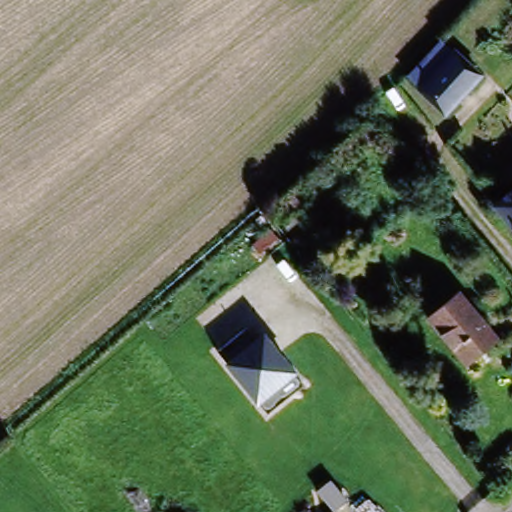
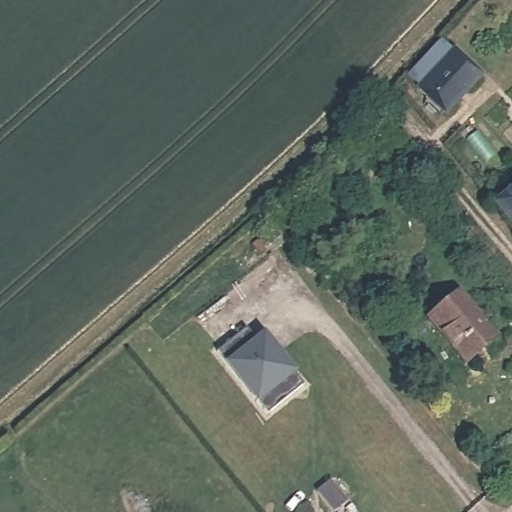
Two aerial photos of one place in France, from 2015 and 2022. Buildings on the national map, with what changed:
unchanged [(462,51),(480,75),(442,106),(423,84),(462,51)]
unchanged [(405,169),(426,193),(413,203),(393,178),(405,169)]
unchanged [(490,203),(512,182),(512,229),(501,216),(490,203)]
unchanged [(432,309),(461,289),(495,337),(467,357),(432,309)]
unchanged [(268,414),(226,364),(228,361),(220,352),(247,328),(258,338),(263,334),(306,381),(268,414)]

